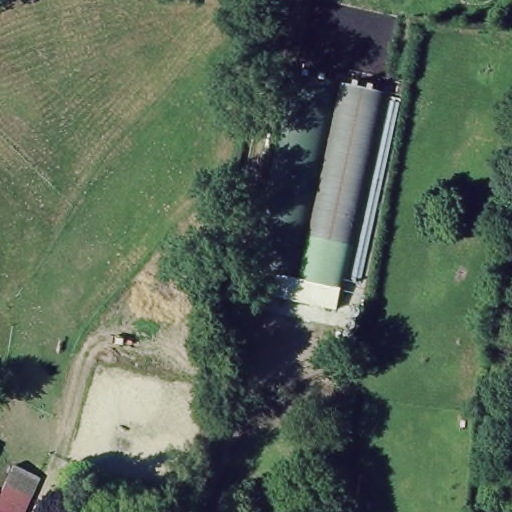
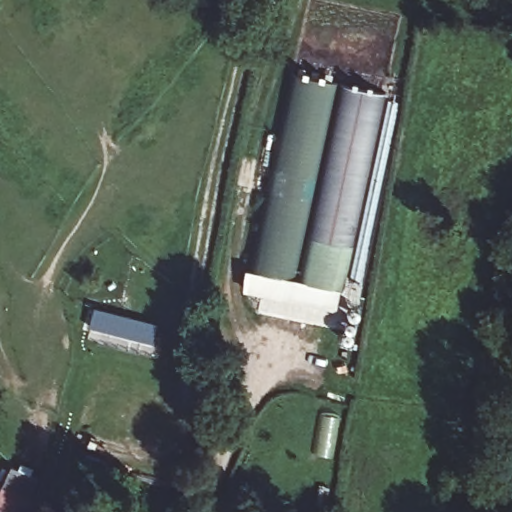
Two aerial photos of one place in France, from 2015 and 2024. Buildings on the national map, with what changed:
unchanged [(340,311),(321,308),(307,317),(267,310),(274,277),(247,269),(294,71),(387,91),(340,311)]
new [(159,325),(153,344),(91,328),(96,308),(159,325)]
unchanged [(41,476),(23,512),(0,512),(0,456),(41,476)]

